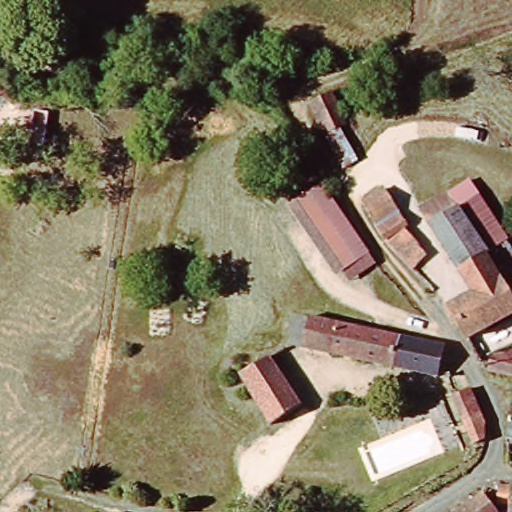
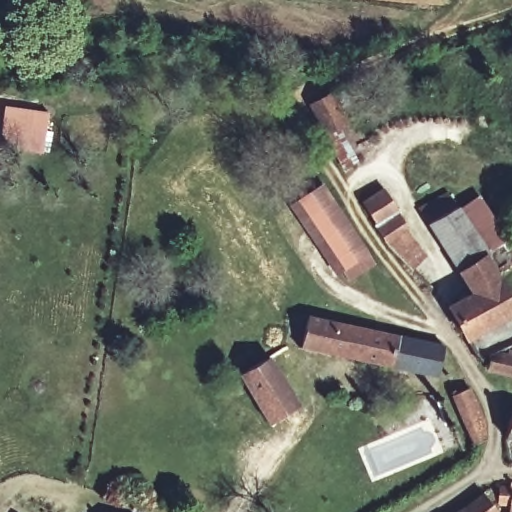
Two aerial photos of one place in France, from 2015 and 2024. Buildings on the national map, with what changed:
unchanged [(45,56),(54,53),(60,56),(62,60),(62,66),(60,71),(57,73),(52,74),(45,70),(43,67),(42,62),(45,56)]
unchanged [(322,136),(307,105),(327,97),(342,125),(322,136)]
new [(3,105),(48,111),(42,154),(0,147),(0,129),(3,105)]
unchanged [(335,259),(295,203),(322,186),(360,241),(374,262),(348,280),(335,259)]
unchanged [(380,230),(383,228),(368,204),(388,190),(414,227),(411,229),(432,256),(415,269),(390,243),(380,230)]
unchanged [(447,199),(452,205),(472,195),(510,249),(512,252),(512,270),(505,275),(493,259),(488,262),(512,297),(512,320),(467,347),(450,313),(474,301),(419,215),(447,199)]
unchanged [(435,376),(296,346),(302,318),(442,349),(435,376)]
unchanged [(493,365),(500,360),(512,362),(512,381),(492,377),(493,365)]
unchanged [(247,381),(276,363),(307,412),(277,430),(247,381)]
unchanged [(475,398),(496,448),(482,455),(462,405),(475,398)]
unchanged [(510,407),(512,408),(512,441),(502,438),(510,407)]
unchanged [(500,511),(502,493),(512,493),(512,512),(500,511)]
unchanged [(487,500),(495,512),(469,512),(487,500)]

